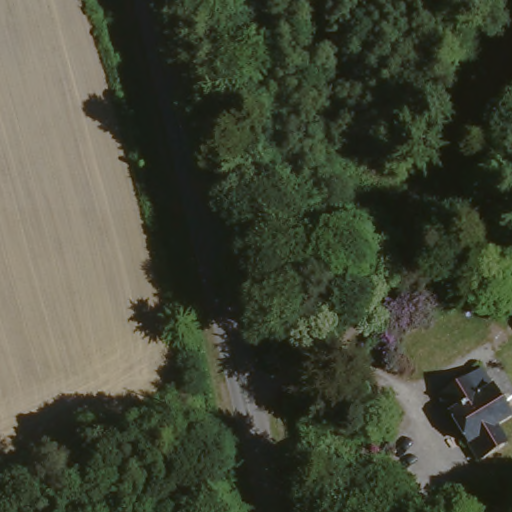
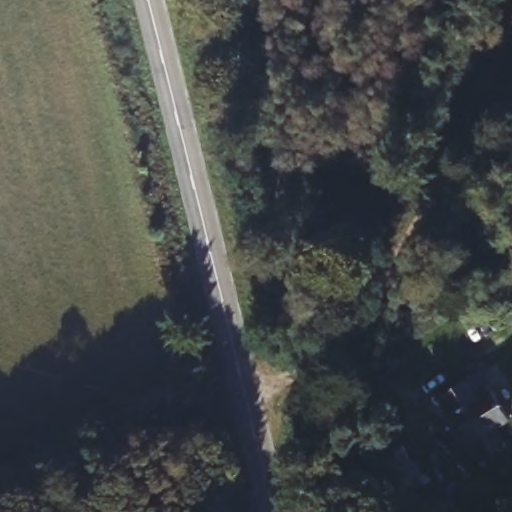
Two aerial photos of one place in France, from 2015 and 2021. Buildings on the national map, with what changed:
unchanged [(512,415),(512,417),(502,423),(512,442),(512,445),(486,460),(447,396),(486,372),(512,415)]

